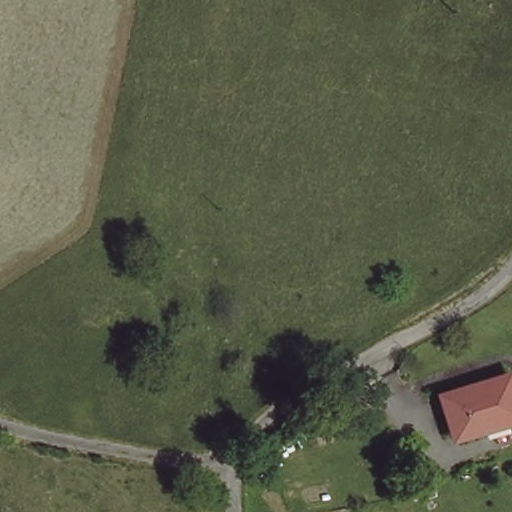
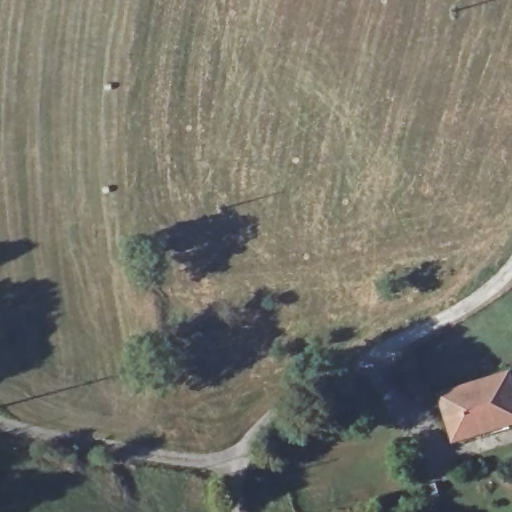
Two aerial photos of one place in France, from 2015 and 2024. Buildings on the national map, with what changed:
unchanged [(487,438),(483,427),(454,436),(443,395),(509,375),(512,385),(512,429),(487,438)]

